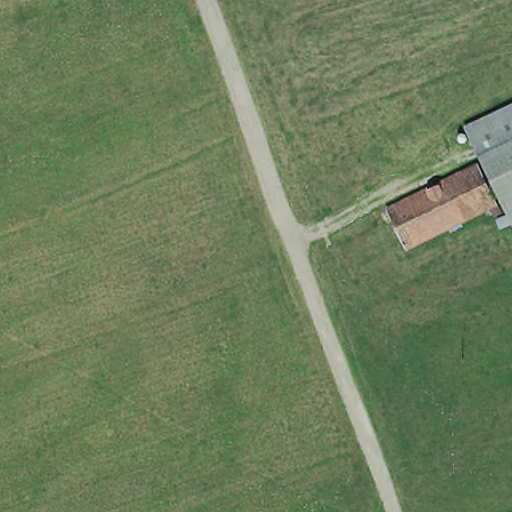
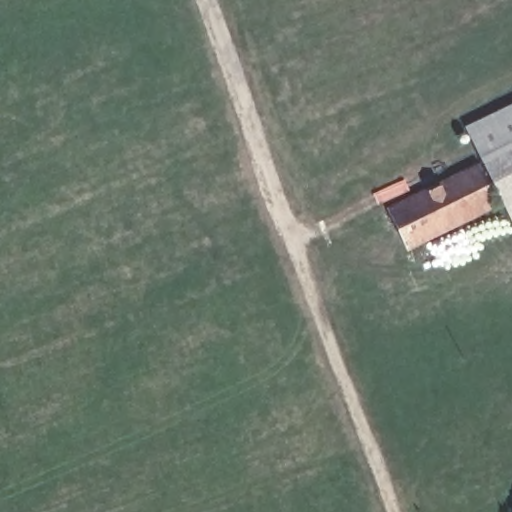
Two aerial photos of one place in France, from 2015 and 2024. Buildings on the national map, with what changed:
unchanged [(471,124),(512,104),(512,141),(486,153),(471,124)]
unchanged [(511,204),(486,153),(512,141),(512,206),(511,204)]
unchanged [(502,198),(412,242),(394,205),(484,161),(502,198)]

